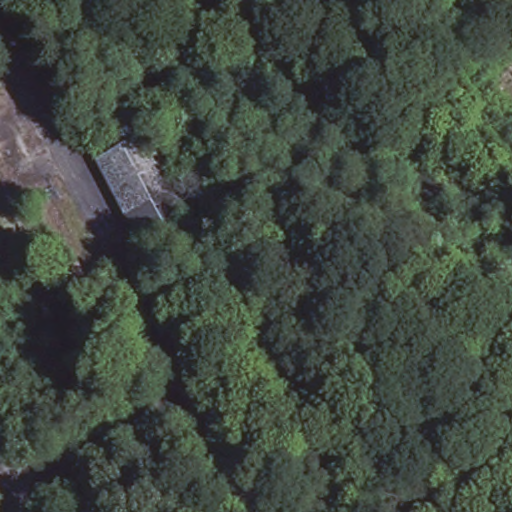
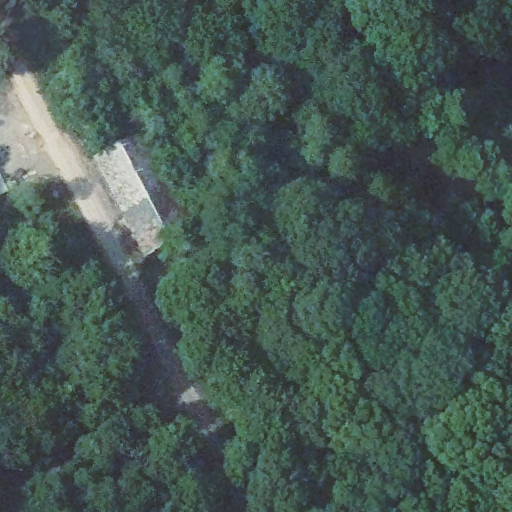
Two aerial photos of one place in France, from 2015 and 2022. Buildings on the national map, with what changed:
unchanged [(512,51),(512,107),(486,82),(512,51)]
unchanged [(98,157),(103,152),(99,139),(131,120),(138,134),(147,130),(199,225),(149,257),(98,157)]

